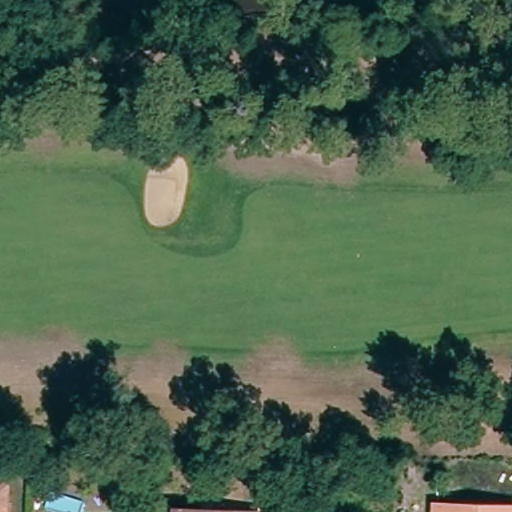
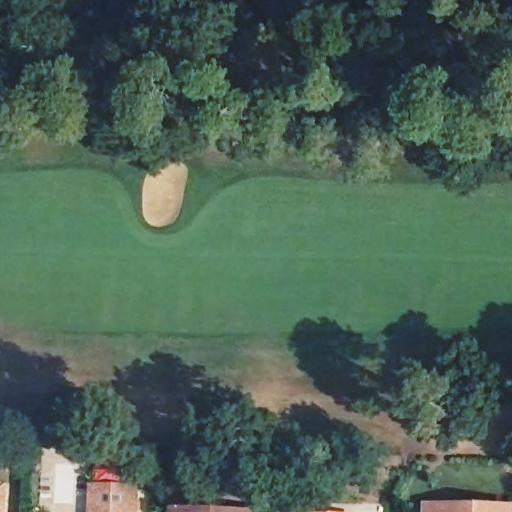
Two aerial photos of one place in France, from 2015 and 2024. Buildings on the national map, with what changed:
new [(89,484),(141,484),(140,512),(88,512),(89,484)]

